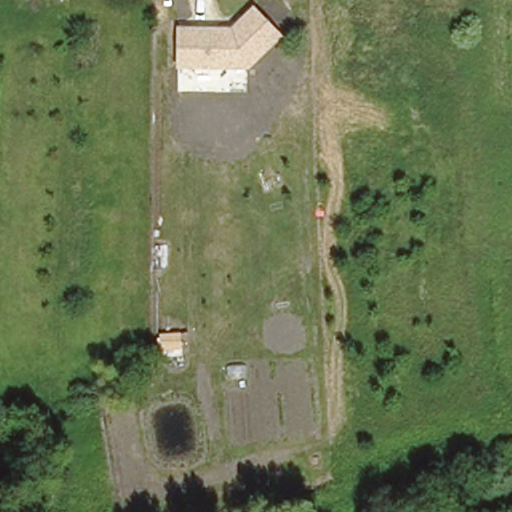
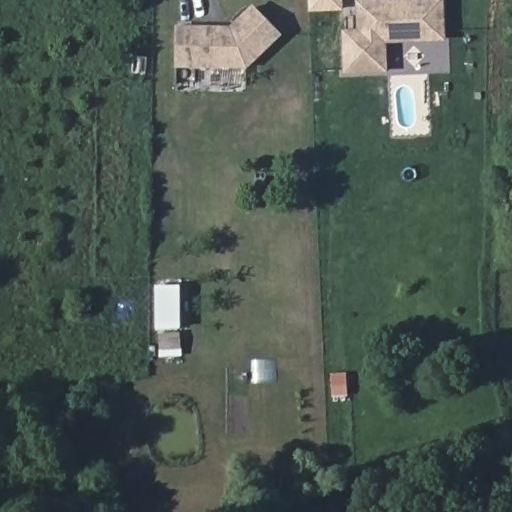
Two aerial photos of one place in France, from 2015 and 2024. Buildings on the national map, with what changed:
new [(310,0),(343,0),(343,10),(311,11),(310,0)]
new [(391,72),(347,74),(345,30),(360,30),(358,0),(447,0),(449,40),(390,43),(391,72)]
unchanged [(249,71),(179,70),(180,27),(231,27),(254,5),(284,36),(249,71)]
new [(183,349),(162,351),(155,288),(177,285),(182,329),(183,349)]

